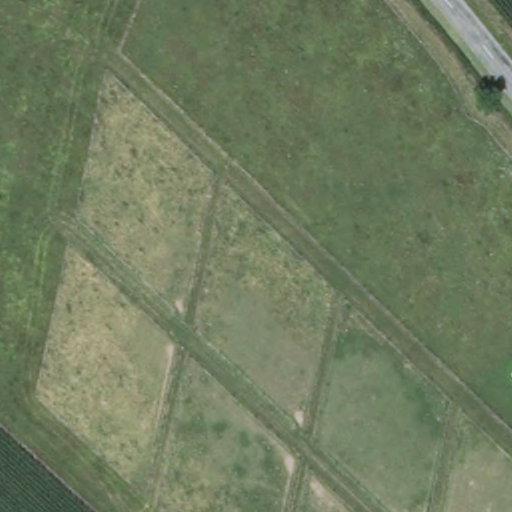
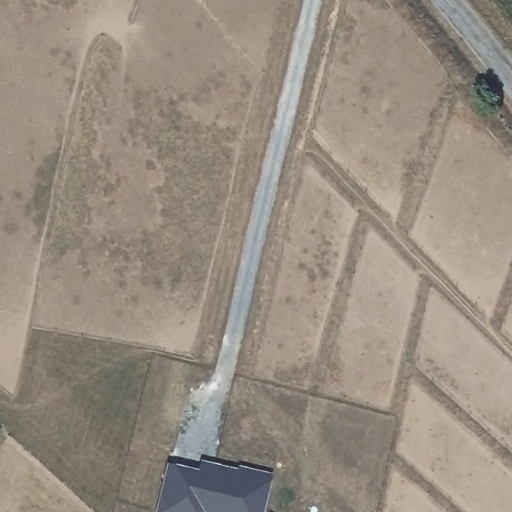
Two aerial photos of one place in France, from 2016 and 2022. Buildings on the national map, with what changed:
new [(201,473),(204,464),(215,467),(240,474),(270,482),(267,492),(262,512),(213,512),(207,510),(206,512),(158,512),(171,465),(201,473)]

